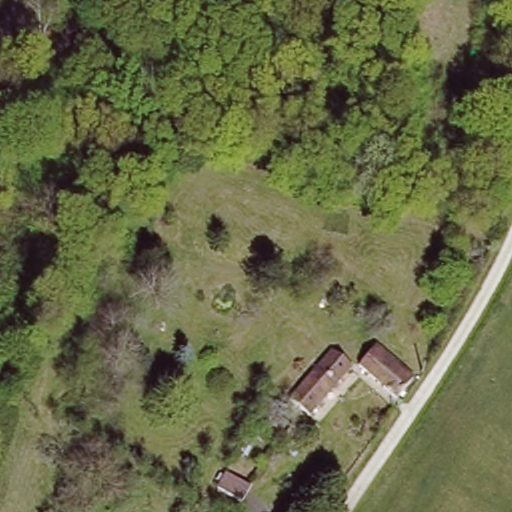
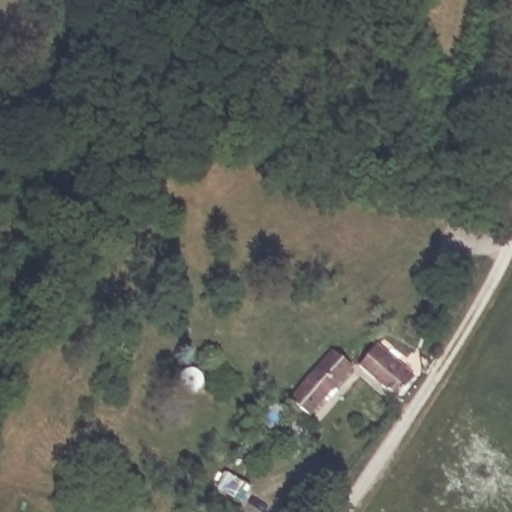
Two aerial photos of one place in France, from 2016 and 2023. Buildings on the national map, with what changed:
unchanged [(415,370),(396,396),(356,367),(363,357),(375,342),(415,370)]
unchanged [(339,368),(300,418),(285,407),(326,357),(339,368)]
unchanged [(230,480),(245,492),(235,506),(220,495),(230,480)]

